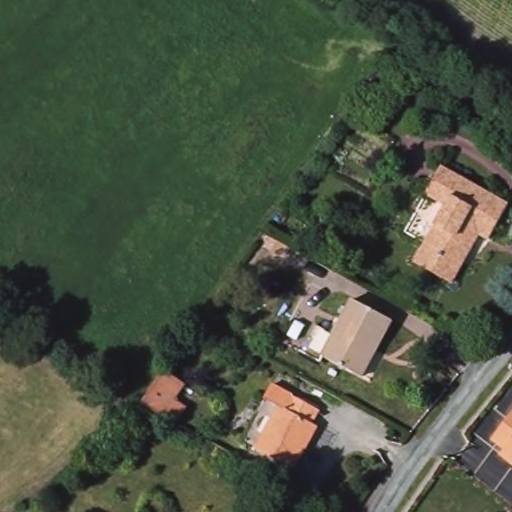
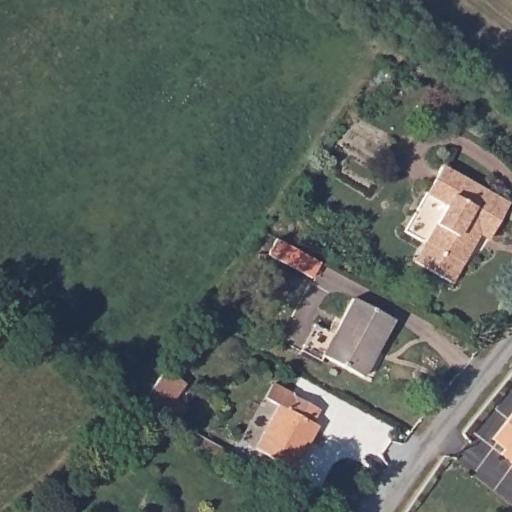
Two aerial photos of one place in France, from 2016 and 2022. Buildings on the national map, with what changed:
unchanged [(490,240),(480,234),(455,282),(418,263),(446,207),(427,197),(444,166),(510,201),(490,240)]
unchanged [(310,349),(323,324),(340,333),(359,297),(398,318),(368,375),(328,353),(325,358),(310,349)]
unchanged [(177,398),(189,405),(178,421),(145,403),(168,371),(186,383),(177,398)]
unchanged [(296,463),(258,443),(281,400),(288,404),(295,392),(320,405),(315,415),(320,418),(296,463)]
unchanged [(505,442),(512,434),(512,447),(505,442)]

